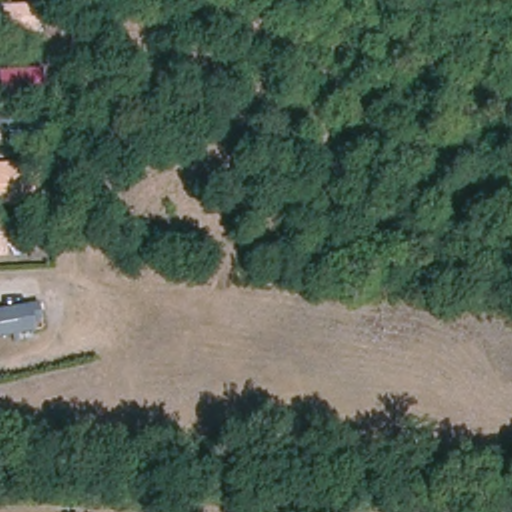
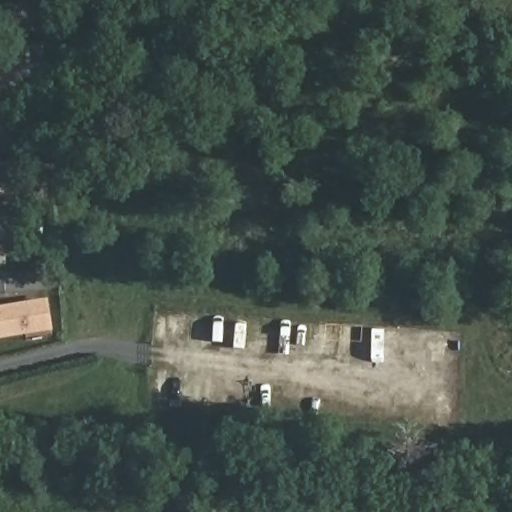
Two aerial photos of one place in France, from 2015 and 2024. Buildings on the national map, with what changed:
unchanged [(0,34),(0,3),(40,2),(40,34),(0,34)]
new [(11,62),(12,65),(22,65),(24,85),(14,85),(14,89),(0,89),(0,62),(11,62)]
unchanged [(27,161),(29,184),(21,184),(22,201),(0,203),(0,164),(27,161)]
unchanged [(14,224),(16,246),(7,246),(8,255),(0,256),(0,225),(14,224)]
new [(53,330),(0,340),(0,306),(47,297),(53,330)]

